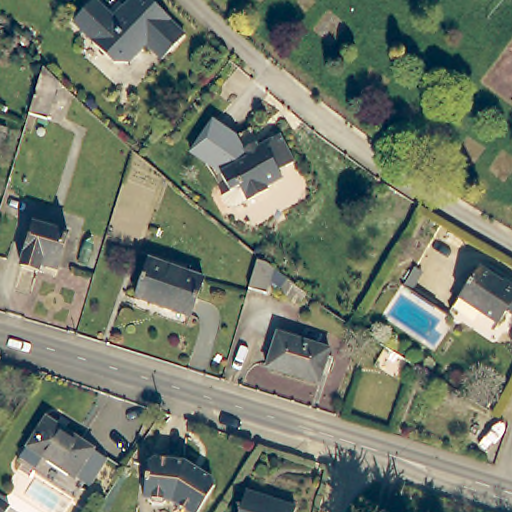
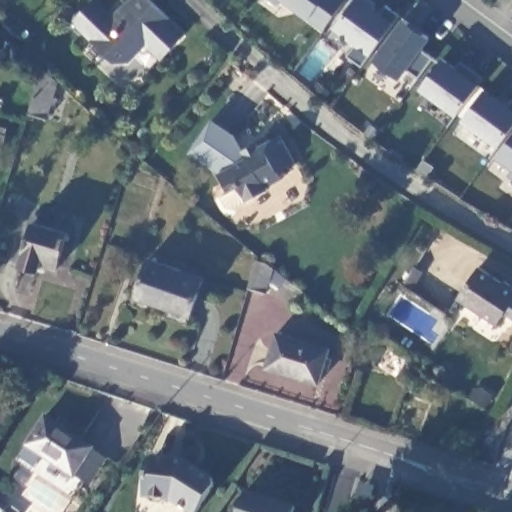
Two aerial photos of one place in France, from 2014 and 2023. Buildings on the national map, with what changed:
unchanged [(84,0),(93,0),(112,16),(127,0),(155,0),(168,11),(165,15),(182,29),(159,57),(142,42),(126,61),(114,61),(90,41),(91,39),(68,19),(84,0)]
new [(322,30),(307,18),(284,0),(345,0),(322,30)]
new [(380,11),(385,3),(398,12),(393,21),(369,54),(361,64),(347,54),(354,43),(333,28),(354,0),(366,0),(380,11)]
new [(417,76),(408,68),(400,79),(372,61),(403,17),(430,36),(421,49),(432,57),(417,76)]
new [(479,82),(455,114),(420,88),(442,55),(457,65),(461,60),(484,77),(479,82)]
unchanged [(58,86),(48,121),(29,115),(42,74),(58,86)]
new [(496,147),(462,122),(485,90),(507,105),(511,98),(512,98),(512,127),(496,147)]
unchanged [(239,136),(246,150),(251,148),(258,150),(283,136),(297,163),(281,172),(284,178),(268,187),(270,189),(231,210),(223,196),(232,191),(221,172),(193,149),(217,119),(239,136)]
unchanged [(2,153),(0,152),(0,135),(7,137),(2,153)]
new [(507,176),(512,169),(496,158),(512,137),(512,179),(507,176)]
unchanged [(63,239),(52,275),(36,270),(34,277),(15,271),(28,228),(63,239)]
unchanged [(259,256),(306,295),(298,305),(270,285),(267,295),(249,289),(259,256)]
unchanged [(203,279),(191,317),(137,299),(150,261),(203,279)]
unchanged [(477,269),(504,285),(505,283),(512,287),(512,316),(506,312),(491,336),(449,310),(477,269)]
unchanged [(416,278),(410,288),(402,284),(409,273),(416,278)]
unchanged [(331,350),(320,384),(266,368),(277,333),(331,350)]
unchanged [(99,438),(98,440),(111,449),(93,475),(80,466),(69,482),(20,449),(50,405),(51,406),(99,438)]
unchanged [(154,453),(185,456),(209,476),(210,487),(193,512),(190,512),(164,497),(160,502),(152,500),(152,495),(148,493),(151,459),(154,453)]
unchanged [(75,490),(62,509),(28,485),(39,468),(75,490)]
unchanged [(293,512),(239,512),(247,489),(295,506),(293,512)]
unchanged [(4,512),(0,512),(0,499),(9,505),(4,512)]

